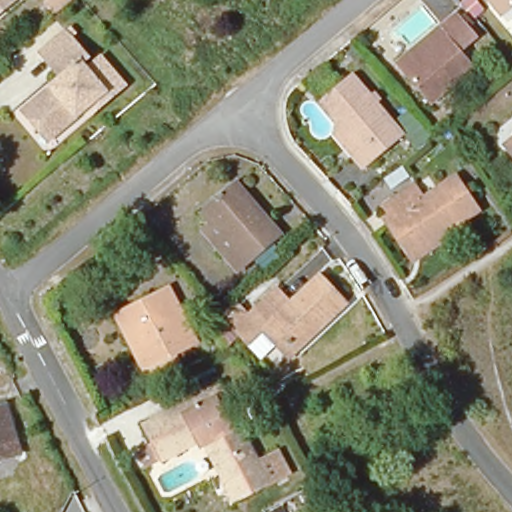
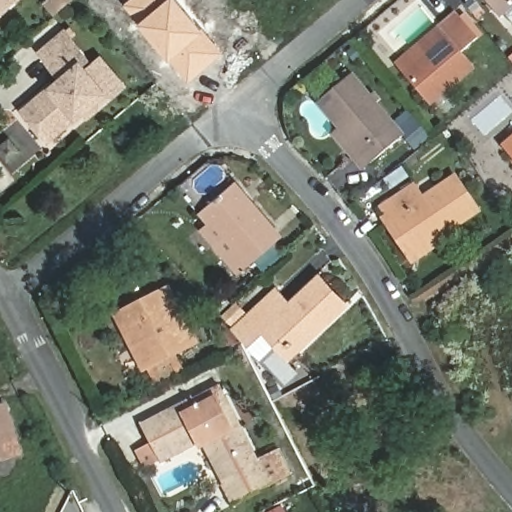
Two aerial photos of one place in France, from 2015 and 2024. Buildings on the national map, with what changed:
unchanged [(0,16),(0,0),(19,0),(0,16)]
new [(129,0),(179,0),(202,28),(221,53),(189,80),(169,56),(139,22),(124,4),(129,0)]
unchanged [(500,17),(486,0),(512,0),(512,7),(500,17)]
unchanged [(415,48),(421,55),(446,34),(440,27),(457,12),(478,37),(462,51),(474,66),(430,104),(396,64),(415,48)]
unchanged [(43,133),(28,115),(67,82),(46,57),(70,37),(92,63),(86,68),(91,75),(105,63),(128,91),(100,114),(93,120),(88,115),(62,137),(53,145),(43,133)]
unchanged [(347,78),(399,140),(367,167),(315,105),(347,78)]
unchanged [(502,151),(512,143),(512,163),(502,151)]
unchanged [(418,204),(450,182),(473,216),(416,254),(393,220),(387,224),(378,211),(409,191),(418,204)]
unchanged [(199,213),(230,185),(278,241),(246,268),(199,213)]
unchanged [(236,303),(248,316),(277,289),(290,302),(319,274),(347,304),(296,351),(287,360),(273,346),(257,360),(238,339),(219,355),(202,335),(225,314),(236,303)]
unchanged [(170,294),(196,345),(142,372),(116,321),(170,294)]
unchanged [(145,466),(138,451),(151,444),(142,426),(203,394),(207,401),(216,397),(250,465),(280,450),(291,474),(237,503),(207,444),(201,447),(197,440),(159,460),(145,466)]
unchanged [(25,454),(0,461),(0,407),(10,404),(25,454)]

